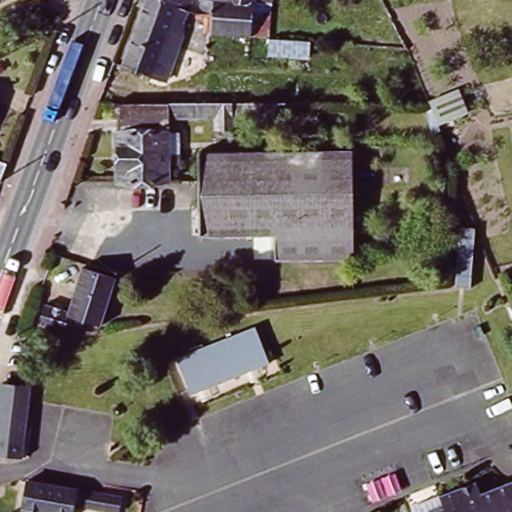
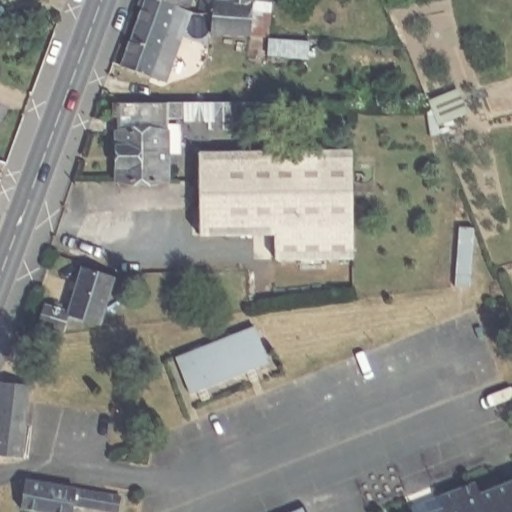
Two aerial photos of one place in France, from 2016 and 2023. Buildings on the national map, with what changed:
unchanged [(122,68),(147,0),(158,0),(178,8),(152,79),(122,68)]
unchanged [(158,0),(192,0),(187,11),(178,8),(158,0)]
unchanged [(202,18),(204,1),(232,2),(233,0),(255,0),(252,38),(220,35),(217,56),(212,56),(214,35),(215,19),(202,18)]
unchanged [(192,96),(191,89),(200,88),(199,95),(192,96)]
unchanged [(169,158),(170,169),(158,170),(158,185),(110,186),(109,121),(103,121),(103,107),(157,106),(157,92),(185,91),(185,98),(199,98),(198,106),(277,106),(277,120),(222,120),(222,132),(205,132),(205,121),(157,121),(157,140),(169,140),(169,158)]
unchanged [(0,170),(0,149),(12,153),(5,171),(0,170)]
unchanged [(199,153),(347,151),(348,205),(349,260),(272,260),(271,234),(199,233),(199,208),(199,153)]
unchanged [(116,276),(99,323),(66,311),(60,327),(38,319),(45,300),(67,309),(83,265),(116,276)]
unchanged [(192,391),(179,354),(254,321),(270,359),(192,391)]
unchanged [(0,457),(0,386),(32,387),(26,454),(21,460),(0,457)]
unchanged [(119,494),(115,512),(72,503),(71,512),(70,512),(18,502),(22,477),(119,494)]
unchanged [(442,504),(440,500),(443,499),(477,485),(482,497),(512,485),(512,512),(442,512),(445,511),(442,504)]

